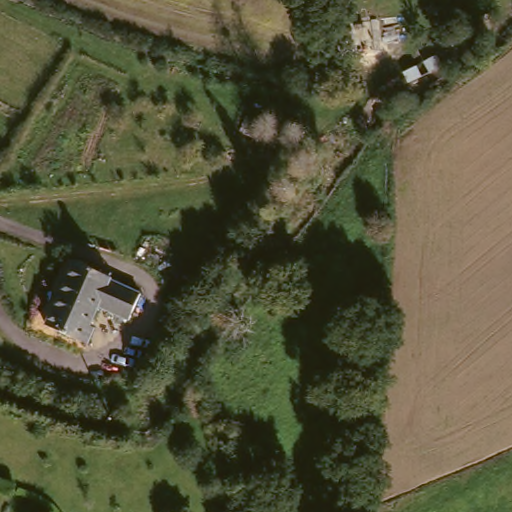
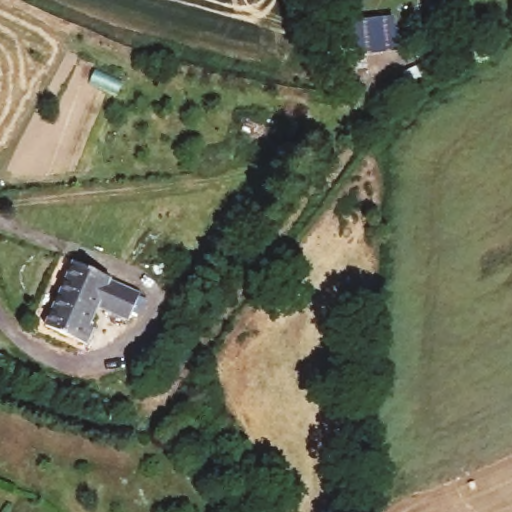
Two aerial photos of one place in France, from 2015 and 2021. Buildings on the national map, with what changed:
unchanged [(81,259),(117,279),(115,284),(142,297),(131,320),(102,305),(92,323),(97,325),(88,344),(47,318),(81,259)]

